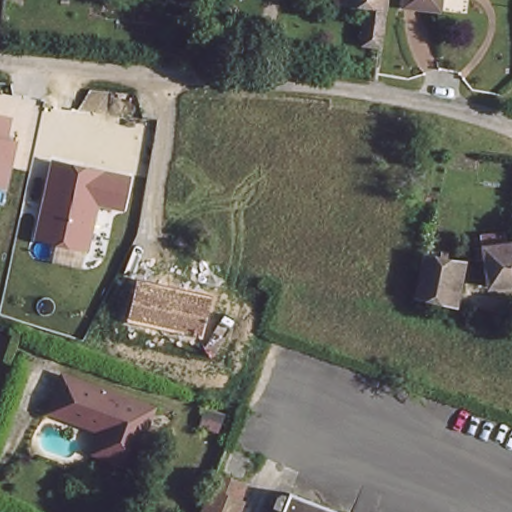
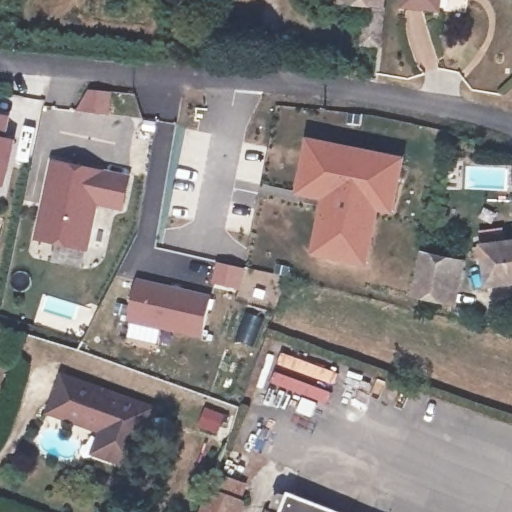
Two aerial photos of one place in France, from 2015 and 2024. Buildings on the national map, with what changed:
unchanged [(361,41),(365,5),(344,1),(344,0),(384,0),(379,45),(361,41)]
unchanged [(406,6),(406,0),(439,0),(438,11),(406,6)]
unchanged [(8,137),(0,135),(0,115),(10,117),(8,137)]
unchanged [(0,186),(0,135),(18,140),(5,187),(0,186)]
new [(314,253),(325,198),(299,192),(309,141),(402,160),(396,180),(390,203),(378,200),(365,262),(314,253)]
unchanged [(131,176),(123,210),(98,206),(88,250),(34,240),(50,160),(131,176)]
unchanged [(489,282),(485,255),(477,256),(476,244),(483,243),(482,234),(504,233),(505,240),(512,239),(512,279),(489,282)]
unchanged [(425,249),(459,256),(450,300),(416,293),(425,249)]
unchanged [(213,296),(202,338),(128,321),(136,277),(213,296)]
unchanged [(101,431),(49,411),(63,375),(153,408),(132,467),(106,458),(93,453),(101,431)]
unchanged [(241,484),(236,500),(241,502),(238,512),(198,512),(213,474),(241,484)]
unchanged [(279,510),(271,506),(276,493),(284,496),(286,492),(339,512),(278,512),(279,510)]
unchanged [(266,511),(269,512),(266,512),(266,511)]

